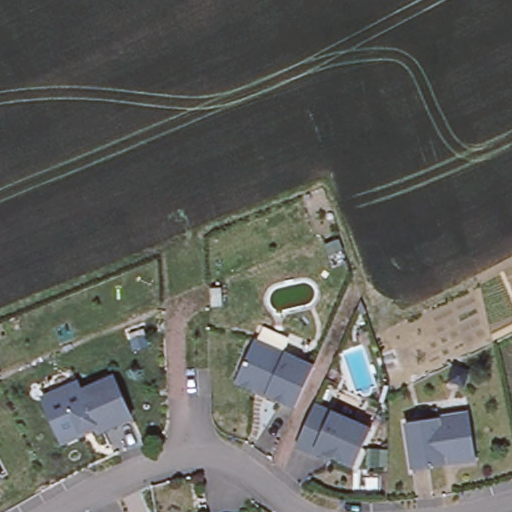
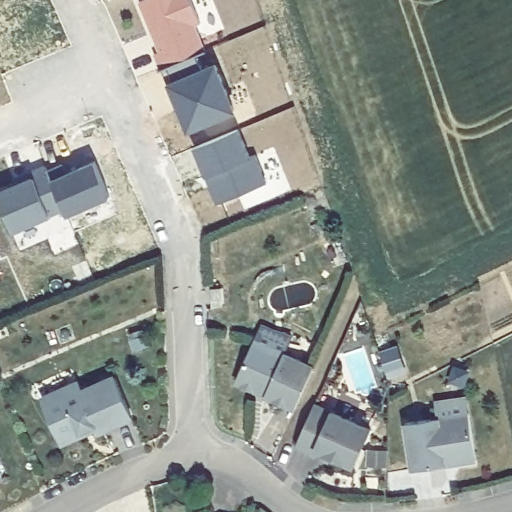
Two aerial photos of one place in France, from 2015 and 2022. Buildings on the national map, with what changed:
new [(191,0),(201,25),(197,27),(207,52),(197,57),(201,72),(214,67),(235,118),(186,138),(165,87),(170,85),(165,70),(161,72),(155,56),(159,52),(139,2),(144,0),(191,0)]
new [(240,131),(248,161),(257,156),(266,184),(215,205),(193,152),(240,131)]
new [(32,180),(30,173),(44,168),(49,181),(92,164),(104,200),(65,220),(61,212),(10,237),(0,209),(0,194),(32,180)]
unchanged [(225,307),(214,308),(213,290),(224,290),(225,307)]
unchanged [(243,375),(240,367),(256,332),(316,358),(298,400),(268,386),(257,382),(243,375)]
unchanged [(65,440),(44,395),(80,378),(84,387),(116,373),(134,414),(101,429),(99,425),(85,431),(65,440)]
unchanged [(372,431),(356,467),(334,457),(332,462),(297,447),(316,406),(372,431)]
unchanged [(415,471),(408,424),(471,415),(478,461),(460,463),(447,466),(415,471)]
unchanged [(2,475),(0,476),(0,472),(2,475)]

